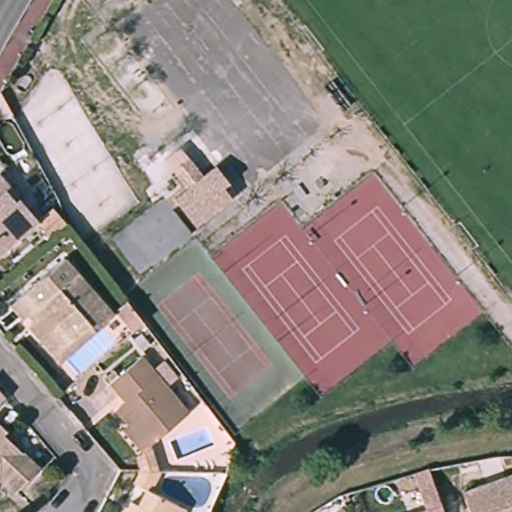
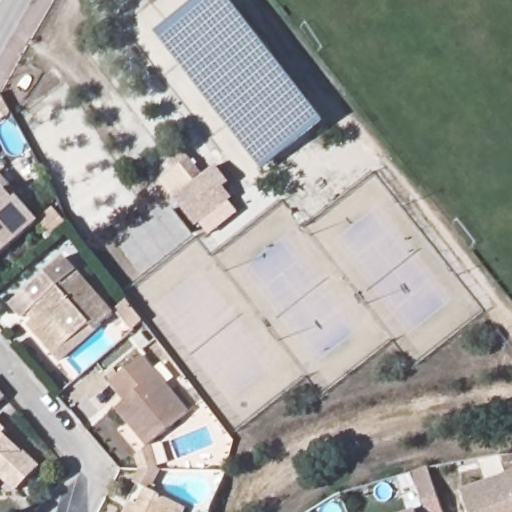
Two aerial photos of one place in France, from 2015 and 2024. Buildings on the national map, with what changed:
new [(326,123),(264,171),(156,33),(198,0),(232,0),(326,123)]
new [(176,199),(162,181),(175,171),(169,163),(186,151),(204,176),(176,199)]
unchanged [(216,167),(229,184),(224,188),(232,199),(196,227),(175,199),(216,167)]
unchanged [(39,219),(0,253),(0,177),(39,219)]
unchanged [(54,206),(67,223),(53,235),(39,219),(54,206)]
unchanged [(34,320),(29,314),(24,318),(12,304),(64,258),(114,314),(61,361),(30,325),(34,320)]
unchanged [(133,331),(116,309),(126,301),(143,323),(133,331)]
unchanged [(140,506),(148,489),(137,483),(143,470),(134,458),(141,452),(122,429),(129,422),(117,408),(124,402),(143,386),(127,367),(142,356),(189,412),(149,446),(158,470),(159,474),(152,490),(186,507),(183,512),(125,512),(131,502),(140,506)]
new [(5,398),(0,403),(0,392),(5,398)]
unchanged [(7,425),(4,429),(39,462),(17,486),(2,472),(0,474),(0,418),(7,425)]
unchanged [(512,469),(512,512),(472,512),(464,487),(512,469)]
unchanged [(435,473),(440,488),(449,512),(432,512),(420,478),(435,473)]

